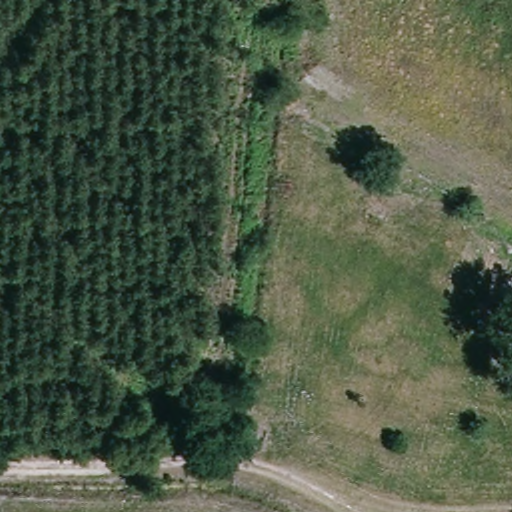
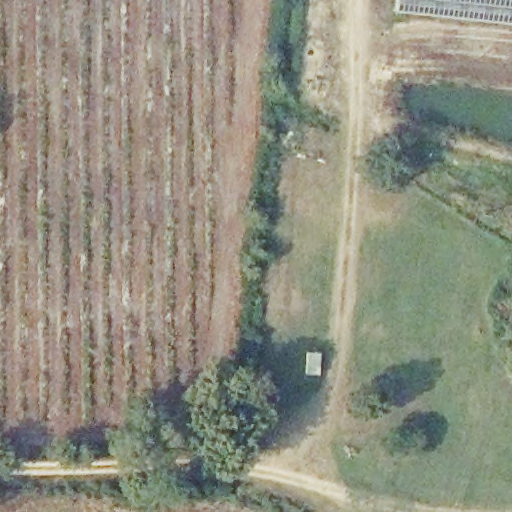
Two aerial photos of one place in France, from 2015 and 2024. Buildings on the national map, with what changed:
new [(391,12),(393,0),(512,0),(512,25),(391,12)]

